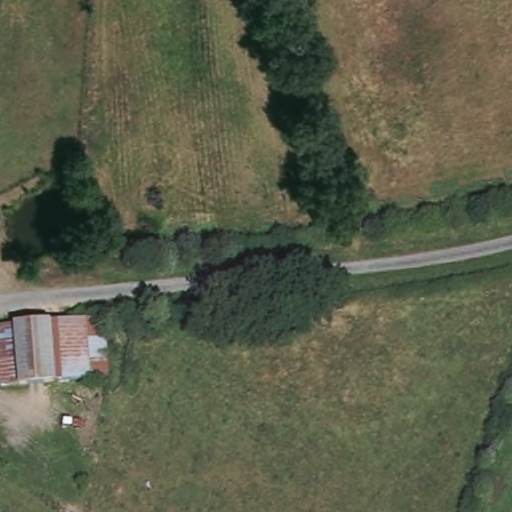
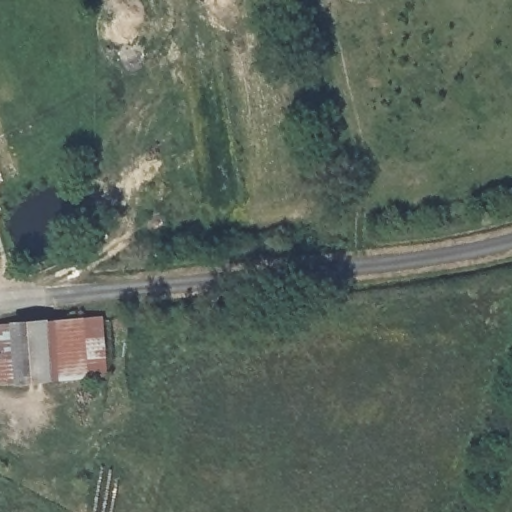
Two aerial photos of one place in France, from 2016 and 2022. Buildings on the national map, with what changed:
unchanged [(103,315),(105,376),(52,380),(49,320),(103,315)]
unchanged [(49,320),(52,380),(0,385),(0,324),(49,320)]

